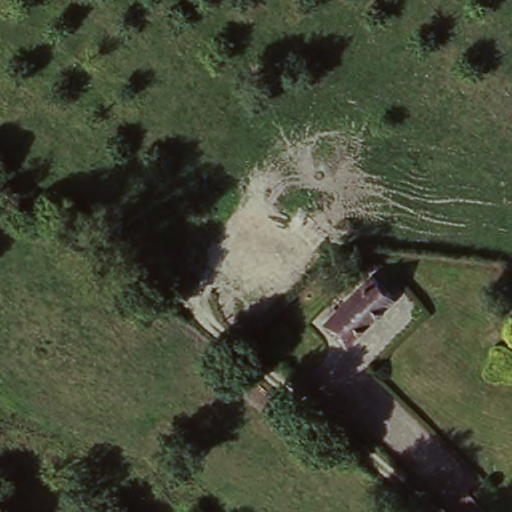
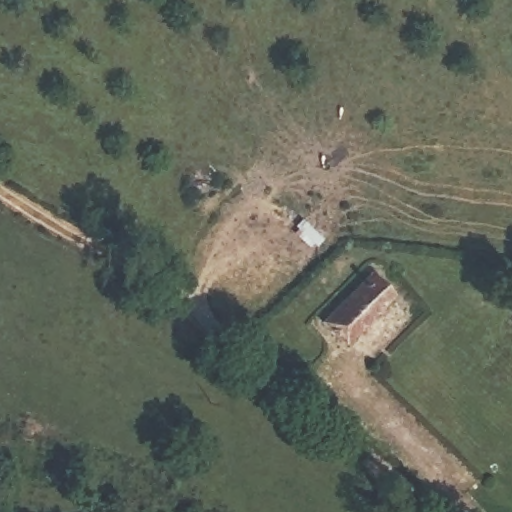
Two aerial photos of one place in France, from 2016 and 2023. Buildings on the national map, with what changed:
unchanged [(395,293),(347,343),(325,319),(370,272),(395,293)]

